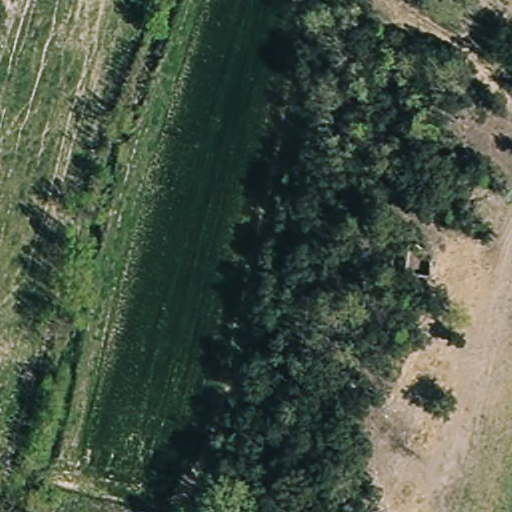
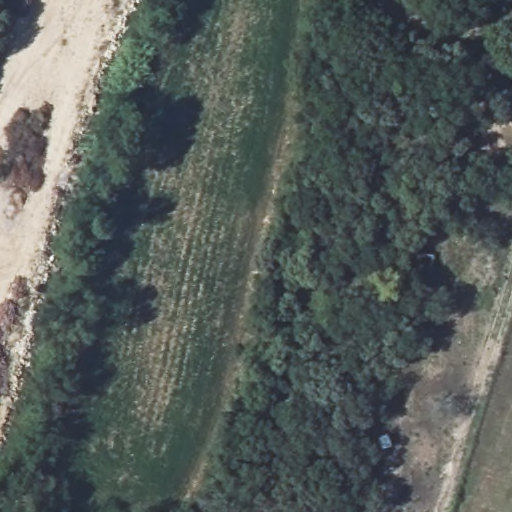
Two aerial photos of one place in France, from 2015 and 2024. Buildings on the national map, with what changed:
unchanged [(403,281),(406,251),(432,255),(430,283),(403,281)]

